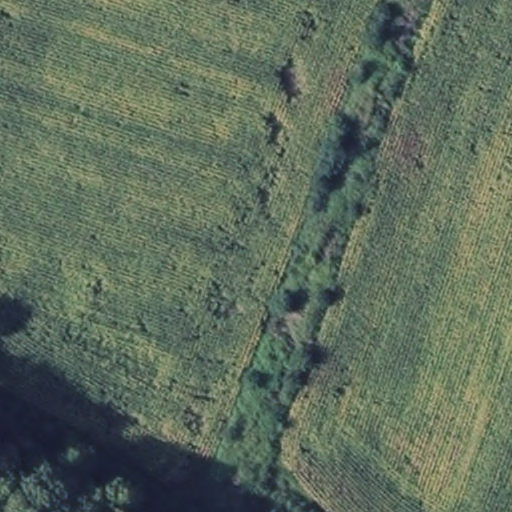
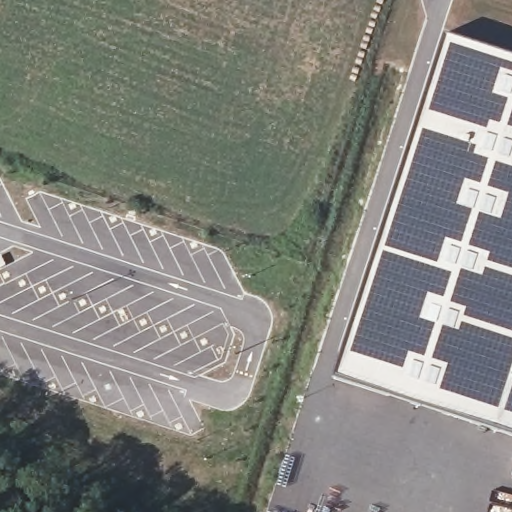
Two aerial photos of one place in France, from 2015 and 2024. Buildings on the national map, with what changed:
new [(363,298),(367,287),(369,280),(379,252),(394,209),(396,200),(402,182),(413,140),(447,34),(512,54),(512,431),(491,423),(418,402),(336,374),(363,298)]

